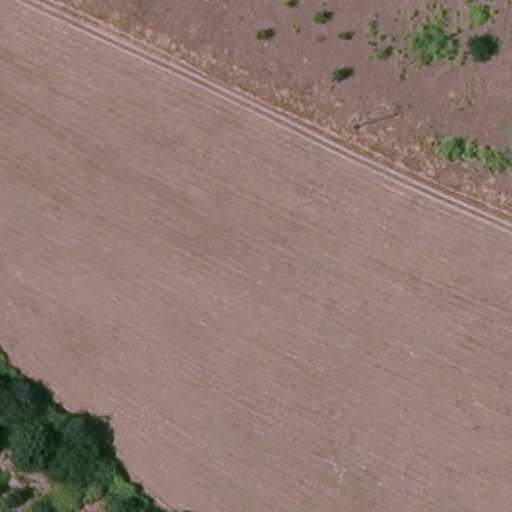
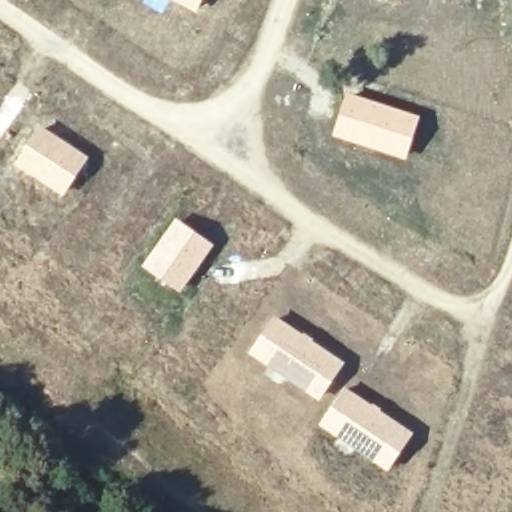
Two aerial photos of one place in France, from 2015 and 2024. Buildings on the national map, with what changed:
new [(196,12),(171,0),(203,0),(196,12)]
new [(401,4),(388,0),(402,0),(401,4)]
new [(347,90),(422,115),(406,161),(331,135),(347,90)]
new [(39,124),(90,156),(63,197),(12,165),(39,124)]
new [(175,215),(215,244),(180,294),(140,265),(175,215)]
new [(273,313),(346,362),(319,401),(246,352),(273,313)]
new [(345,385),(415,432),(388,472),(346,445),(318,424),(345,385)]

